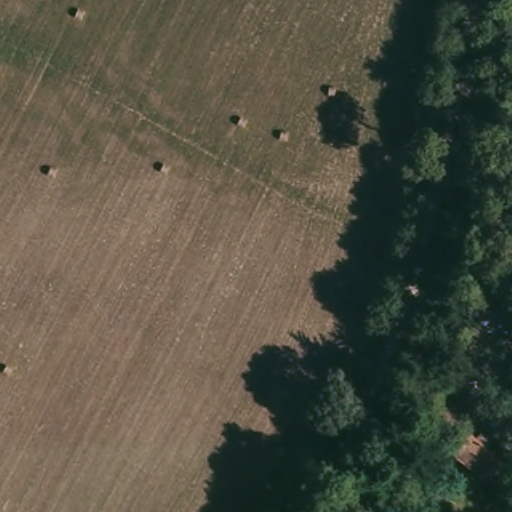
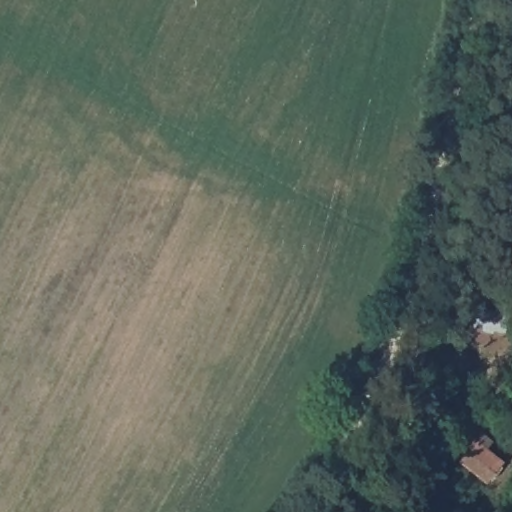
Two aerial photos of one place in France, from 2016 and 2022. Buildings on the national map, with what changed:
unchanged [(458,343),(495,357),(487,374),(449,359),(458,343)]
unchanged [(505,462),(492,484),(450,462),(463,438),(505,462)]

